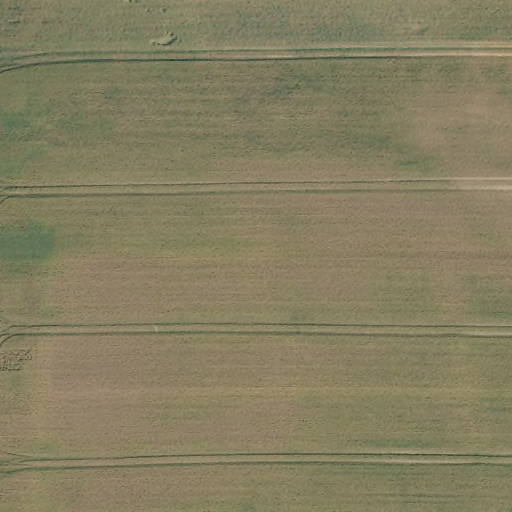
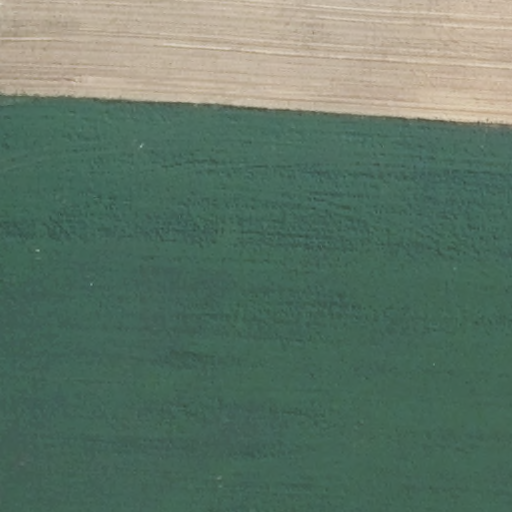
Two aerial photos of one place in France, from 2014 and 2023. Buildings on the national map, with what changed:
[]

